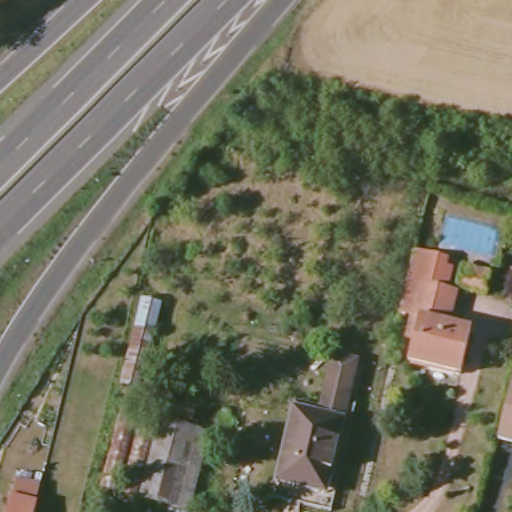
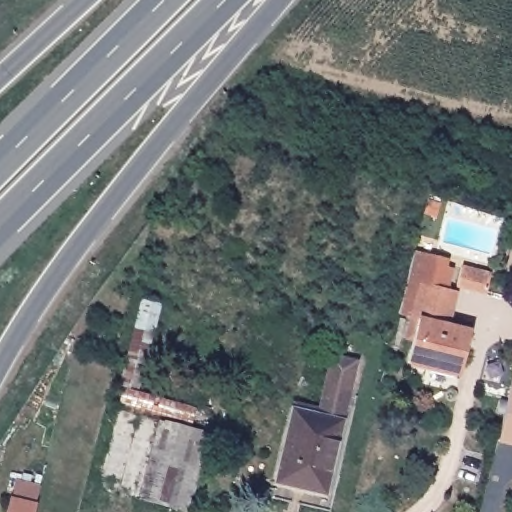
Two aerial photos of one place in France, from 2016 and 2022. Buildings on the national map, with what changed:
unchanged [(447,256),(446,264),(453,266),(449,288),(457,290),(450,321),(473,327),(463,371),(411,358),(420,315),(414,314),(422,281),(409,279),(416,249),(447,256)]
unchanged [(493,271),(487,291),(459,283),(464,263),(493,271)]
unchanged [(512,379),(512,448),(495,444),(512,379)]
unchanged [(340,413),(323,477),(294,470),(292,477),(272,472),(290,400),(340,413)]
unchanged [(234,443),(221,493),(207,490),(202,512),(177,512),(165,509),(185,431),(234,443)]
unchanged [(10,502),(35,508),(35,512),(8,512),(10,502)]

